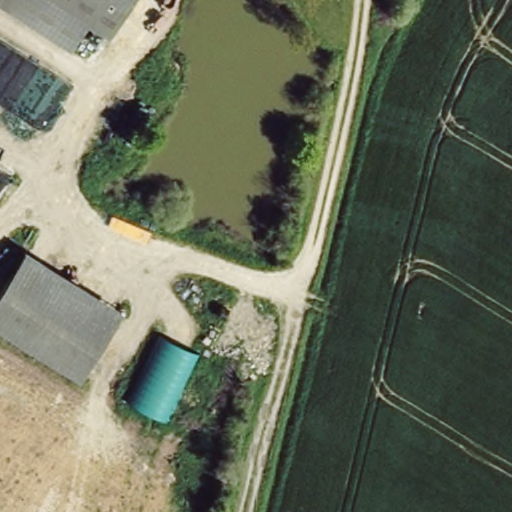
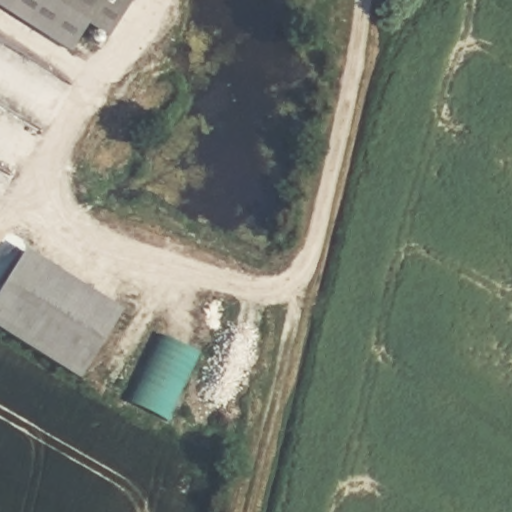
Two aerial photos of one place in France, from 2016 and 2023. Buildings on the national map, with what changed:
unchanged [(0,1),(0,0),(11,0),(8,6),(0,1)]
unchanged [(58,0),(130,0),(109,33),(58,0)]
unchanged [(0,333),(0,283),(23,249),(120,311),(78,383),(0,333)]
unchanged [(163,420),(125,402),(160,331),(198,350),(163,420)]

